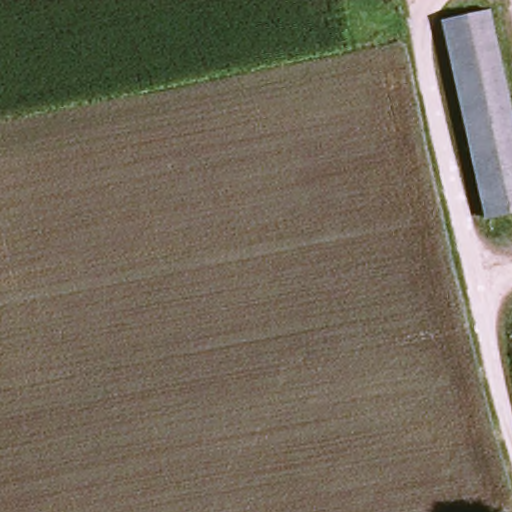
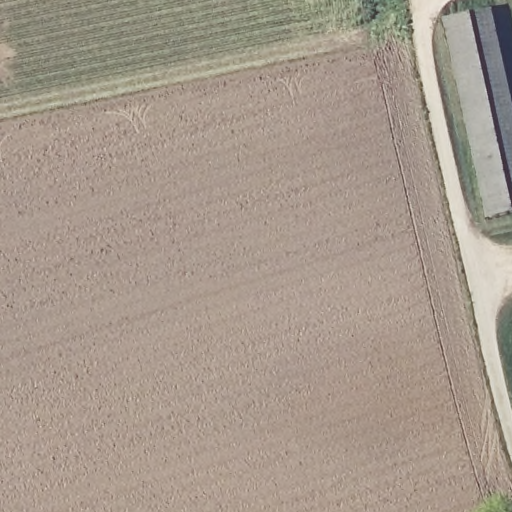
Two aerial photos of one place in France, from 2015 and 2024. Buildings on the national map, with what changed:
unchanged [(461,87),(458,88),(455,73),(445,28),(488,18),(502,77),(461,87)]
unchanged [(502,77),(505,76),(512,106),(512,224),(495,227),(461,87),(502,77)]

